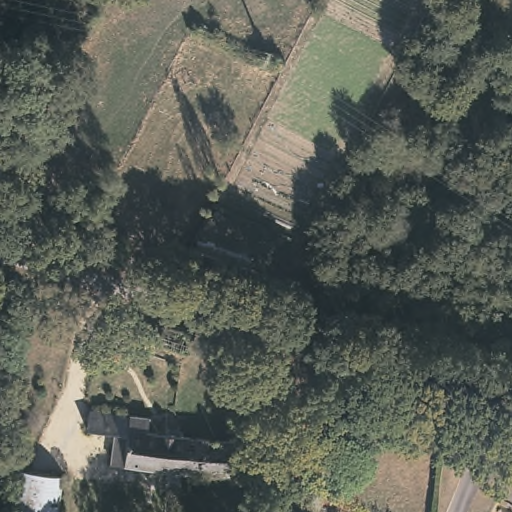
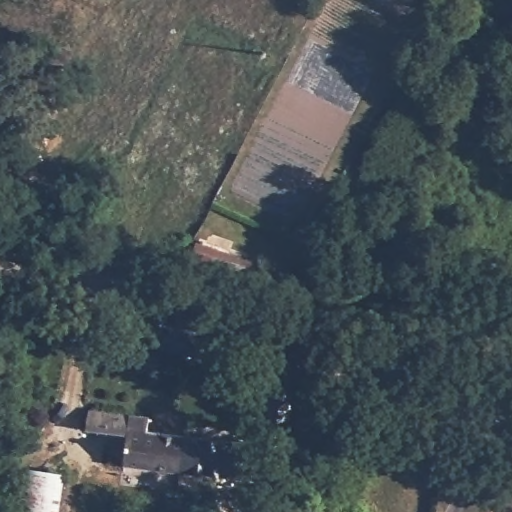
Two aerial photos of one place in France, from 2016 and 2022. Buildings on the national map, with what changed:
unchanged [(197,243),(256,261),(251,291),(190,271),(197,243)]
unchanged [(114,433),(85,429),(87,409),(146,417),(145,431),(183,435),(180,470),(125,462),(111,460),(114,433)]
unchanged [(183,435),(240,441),(236,475),(180,470),(183,435)]
unchanged [(63,482),(59,512),(4,512),(10,474),(63,482)]

